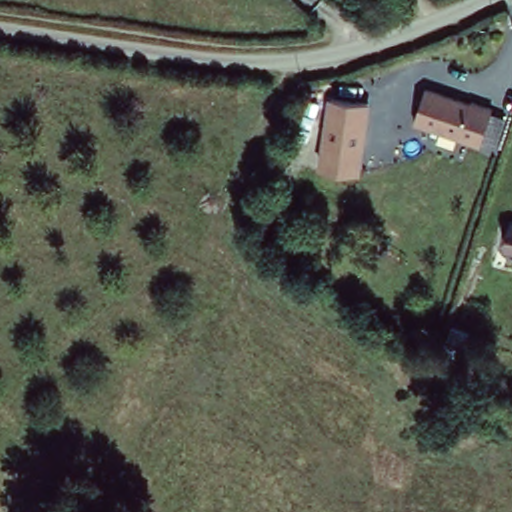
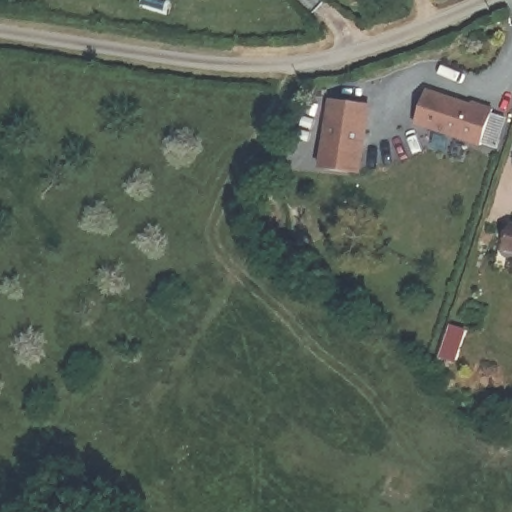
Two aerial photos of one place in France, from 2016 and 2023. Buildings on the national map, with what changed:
unchanged [(424,84),(494,107),(480,144),(412,125),(424,84)]
unchanged [(328,97),(369,103),(361,174),(320,168),(328,97)]
unchanged [(492,111),(510,116),(502,146),(482,139),(492,111)]
unchanged [(512,233),(512,249),(510,249),(512,233)]

